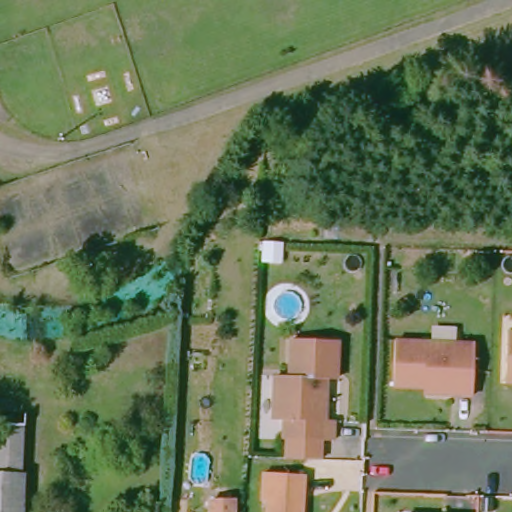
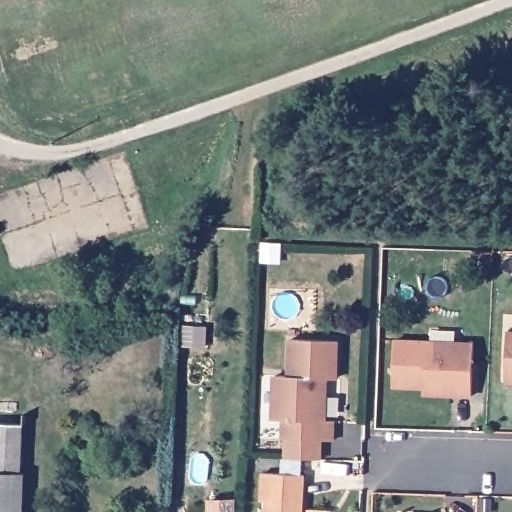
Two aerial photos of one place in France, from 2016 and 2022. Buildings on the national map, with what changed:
unchanged [(285,441),(285,421),(275,421),(277,377),(292,377),(294,341),(338,342),(337,381),(326,380),(325,423),(335,423),(335,442),(285,441)]
unchanged [(429,388),(398,387),(400,341),(479,345),(477,396),(443,395),(429,395),(429,388)]
unchanged [(510,383),(510,374),(512,343),(512,383),(510,383)]
unchanged [(20,512),(0,512),(0,430),(25,432),(20,512)]
unchanged [(267,501),(262,502),(263,475),(305,477),(303,512),(266,512),(267,501)]
unchanged [(215,497),(242,495),(240,512),(215,512),(215,497)]

